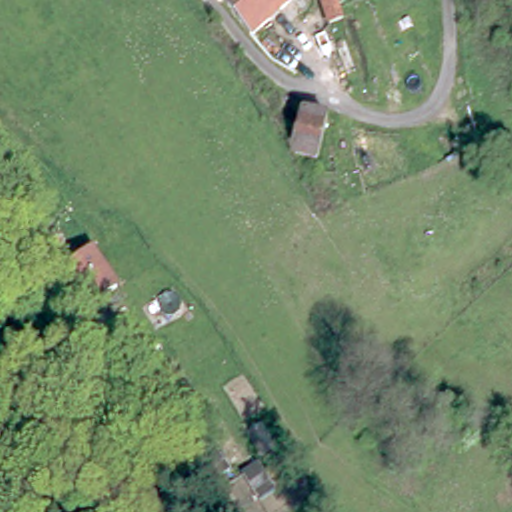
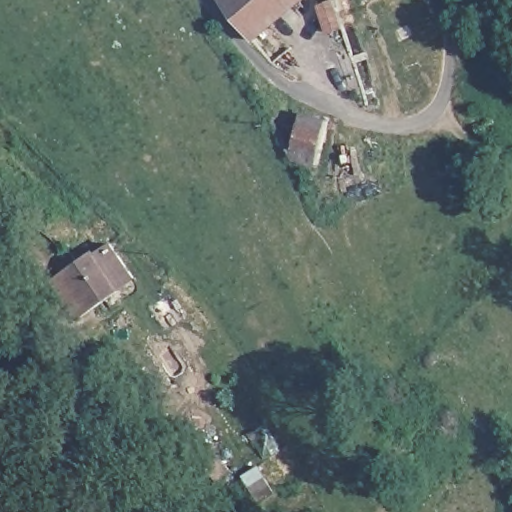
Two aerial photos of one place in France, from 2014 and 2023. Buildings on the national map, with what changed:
unchanged [(220,0),(297,0),(253,39),(220,0)]
unchanged [(317,6),(334,0),(344,27),(328,34),(317,6)]
unchanged [(287,103),(300,114),(327,120),(316,166),(289,160),(270,120),(287,103)]
demolished [(87,250),(115,283),(80,314),(52,281),(87,250)]

